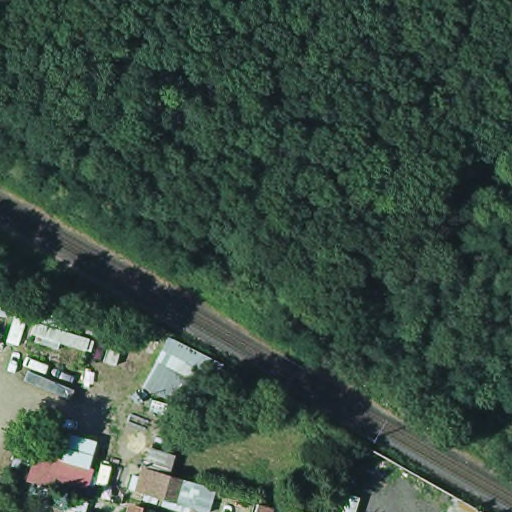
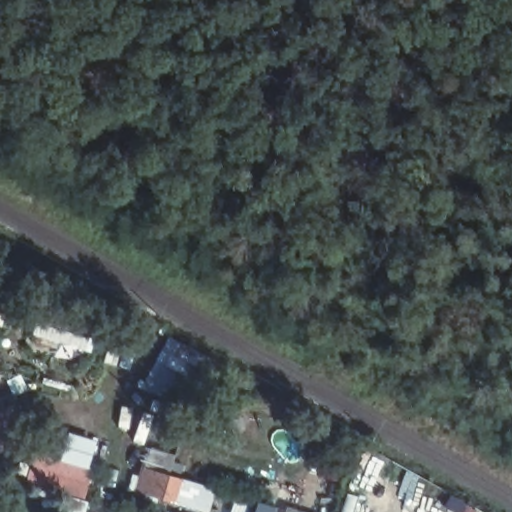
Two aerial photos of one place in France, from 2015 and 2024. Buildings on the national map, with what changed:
unchanged [(25,444),(95,461),(89,498),(20,477),(25,444)]
unchanged [(185,503),(167,498),(151,494),(145,492),(152,471),(157,472),(173,477),(191,482),(200,484),(194,507),(185,503)]
unchanged [(277,505),(276,512),(258,512),(261,500),(277,505)]
unchanged [(303,512),(288,512),(290,508),(303,512)]

